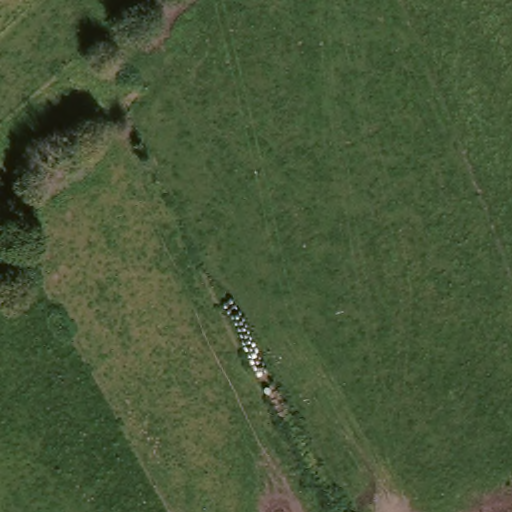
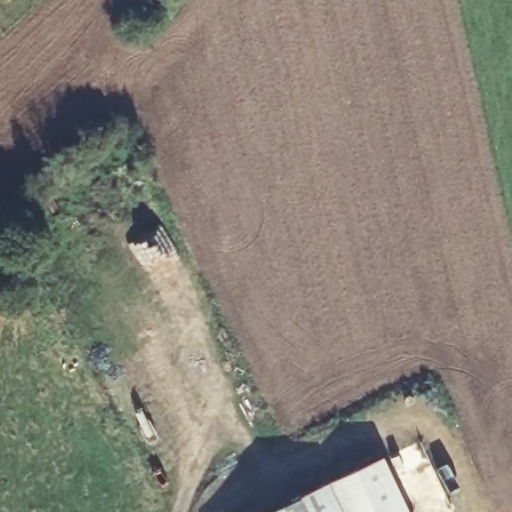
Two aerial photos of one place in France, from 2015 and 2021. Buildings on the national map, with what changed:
unchanged [(0,208),(0,179),(14,196),(0,208)]
new [(265,512),(383,456),(410,512),(265,512)]

